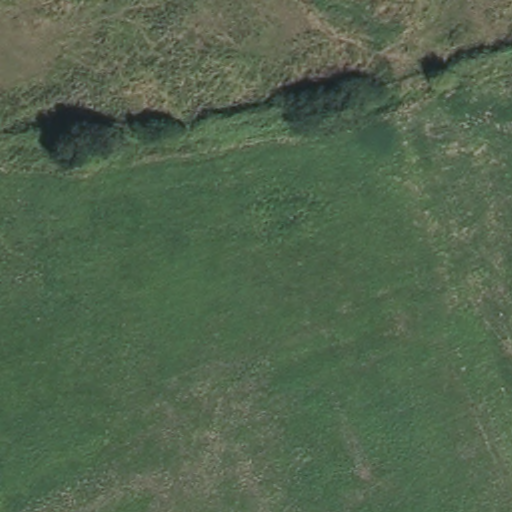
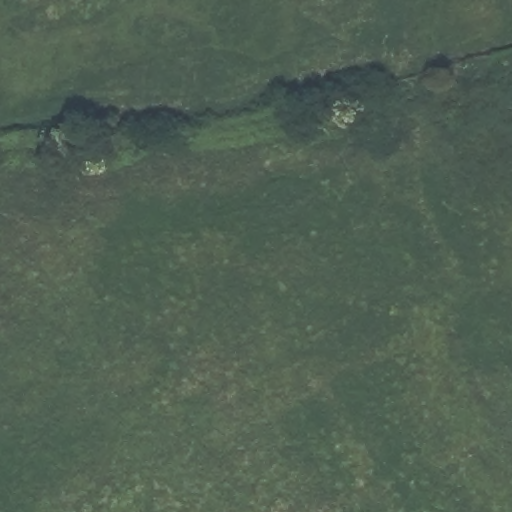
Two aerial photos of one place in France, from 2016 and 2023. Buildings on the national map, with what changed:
[]

